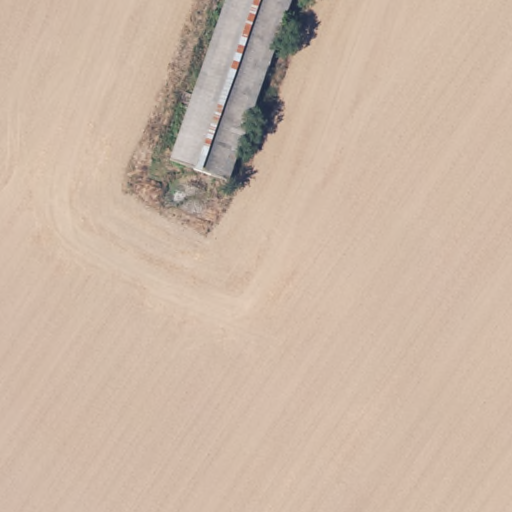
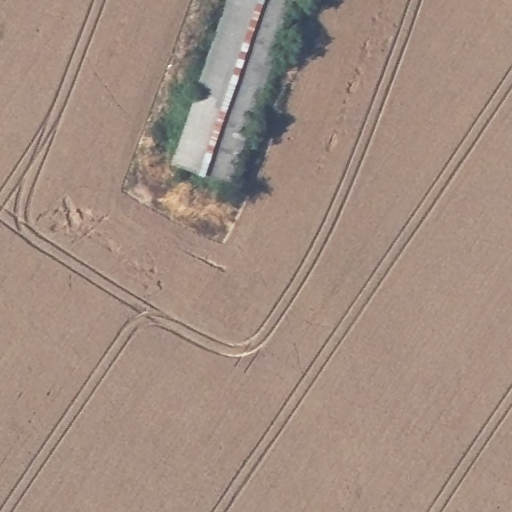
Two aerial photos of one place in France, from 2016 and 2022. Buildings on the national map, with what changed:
unchanged [(235,0),(298,0),(234,181),(178,159),(235,0)]

